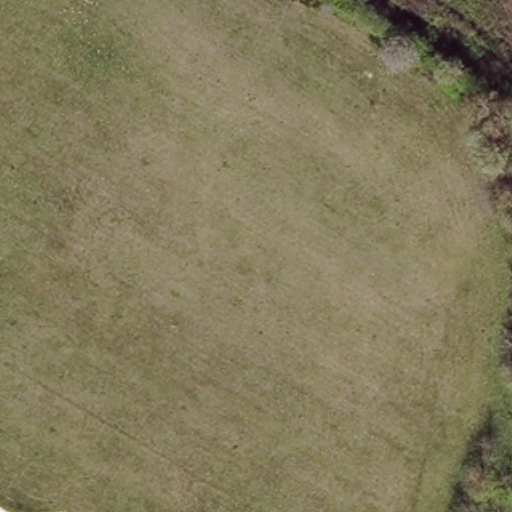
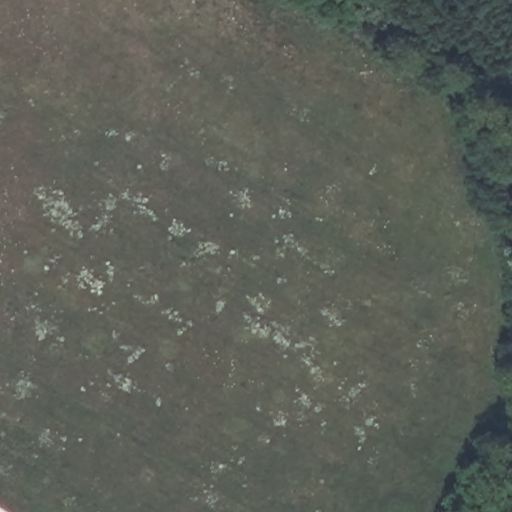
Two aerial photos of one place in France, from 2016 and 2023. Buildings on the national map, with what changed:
[]

